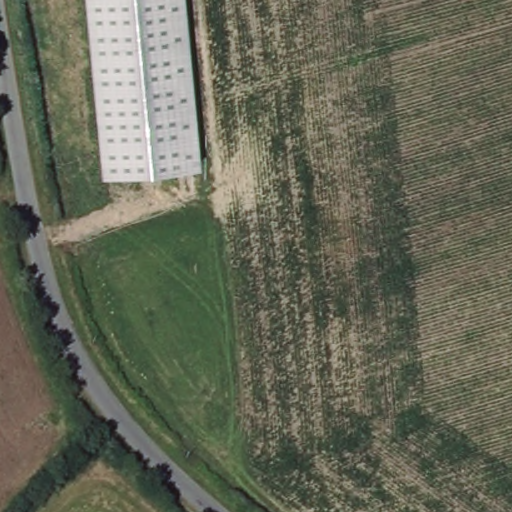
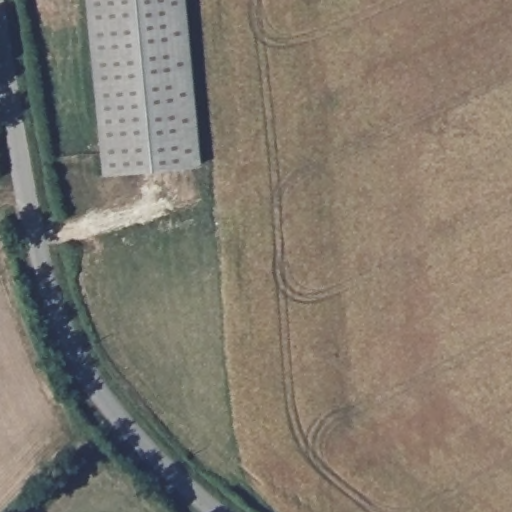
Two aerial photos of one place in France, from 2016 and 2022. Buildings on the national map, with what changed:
unchanged [(86,0),(185,0),(200,166),(102,175),(86,0)]

